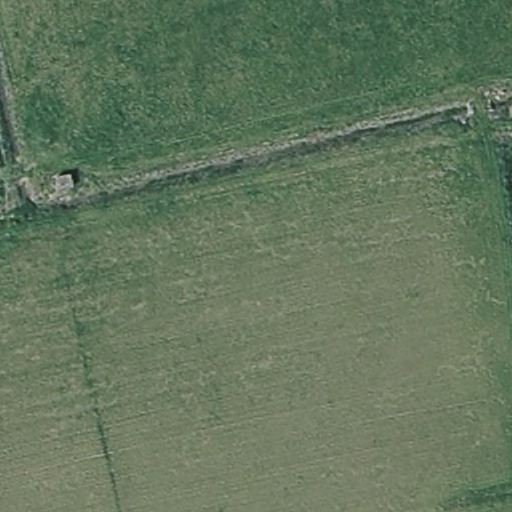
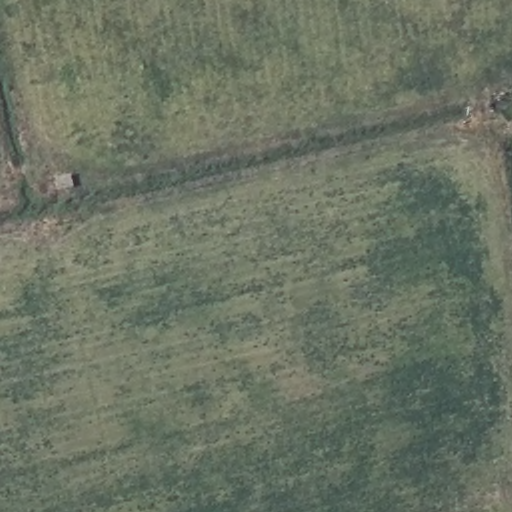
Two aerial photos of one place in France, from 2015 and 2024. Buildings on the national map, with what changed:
unchanged [(72,177),(74,190),(58,192),(56,179),(72,177)]

